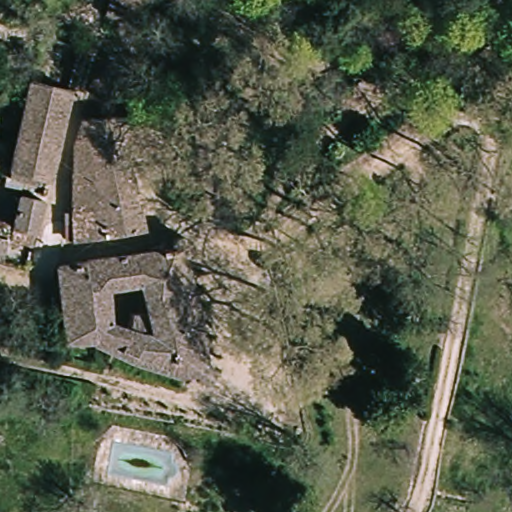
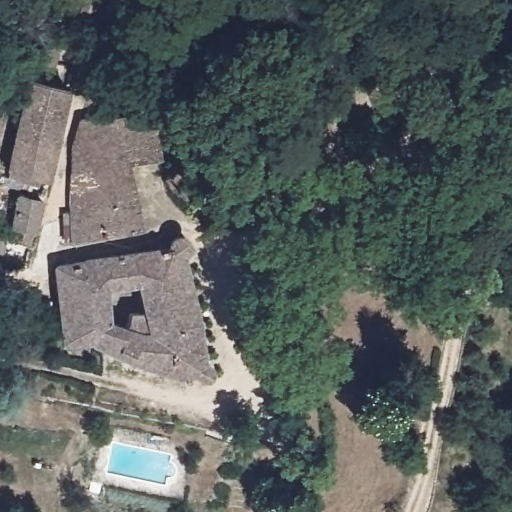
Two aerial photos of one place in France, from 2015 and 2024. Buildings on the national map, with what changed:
unchanged [(103,0),(150,0),(134,22),(127,20),(113,12),(100,4),(103,0)]
unchanged [(69,93),(47,177),(10,168),(25,107),(30,82),(69,93)]
unchanged [(126,169),(135,235),(71,245),(69,210),(71,143),(78,142),(75,120),(103,114),(150,107),(160,163),(126,169)]
unchanged [(39,235),(11,229),(20,194),(48,200),(39,235)]
unchanged [(9,238),(2,266),(0,266),(0,236),(9,238)]
unchanged [(203,242),(205,248),(192,259),(211,363),(220,366),(222,377),(215,382),(206,383),(200,374),(179,373),(147,363),(126,355),(100,340),(71,340),(65,264),(180,245),(185,237),(195,236),(203,242)]

